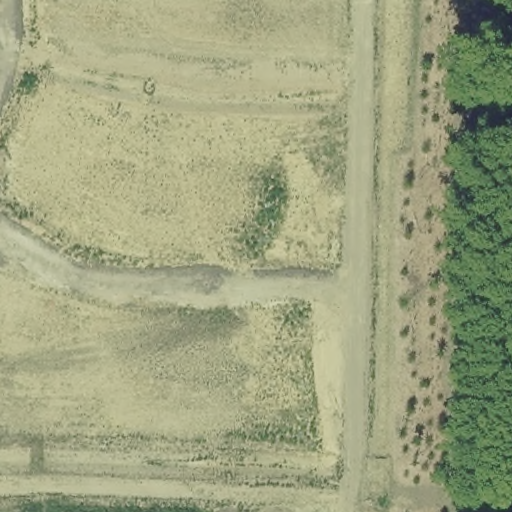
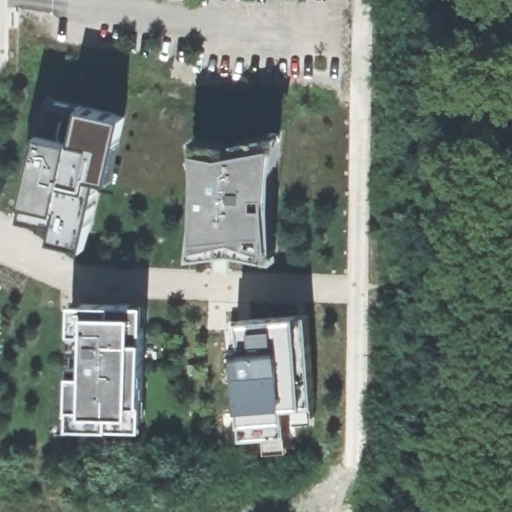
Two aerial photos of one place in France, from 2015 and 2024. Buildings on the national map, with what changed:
new [(48,99),(126,117),(121,142),(110,140),(105,161),(121,166),(114,195),(98,192),(85,249),(51,242),(54,228),(21,220),(48,99)]
new [(197,178),(192,139),(235,146),(236,143),(281,134),(274,173),(272,207),(275,260),(232,253),(191,258),(197,178)]
new [(73,304),(135,305),(135,309),(145,310),(143,400),(135,400),(133,430),(96,429),(96,419),(71,418),(73,304)]
new [(229,349),(231,321),(240,321),(240,320),(308,315),(315,406),(286,408),(288,435),(242,439),(237,373),(230,374),(228,349),(229,349)]

